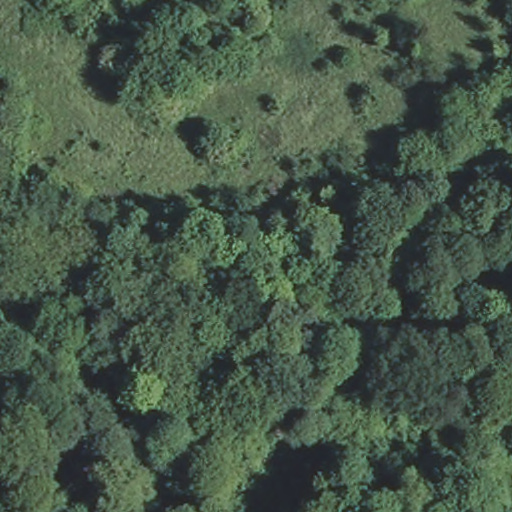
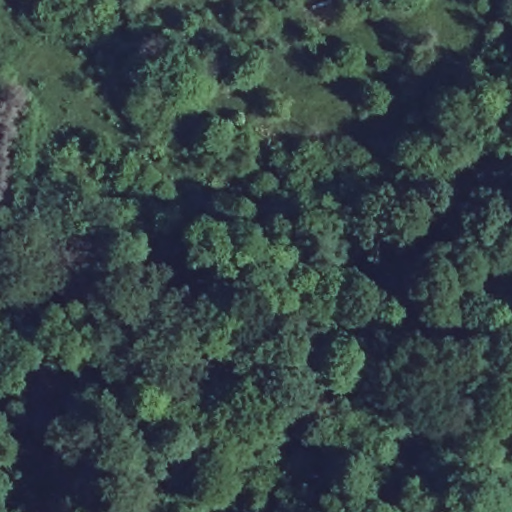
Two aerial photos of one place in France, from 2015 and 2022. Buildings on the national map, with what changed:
[]

